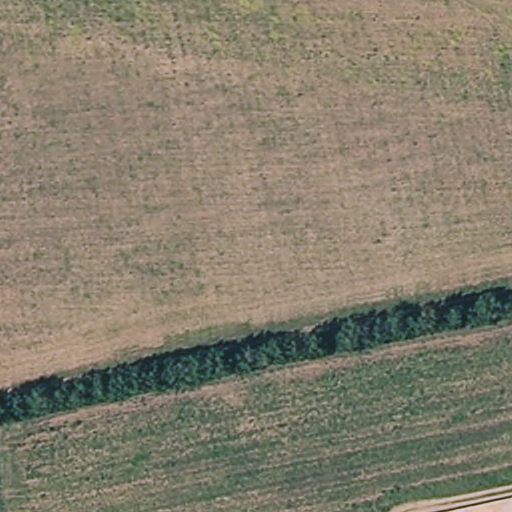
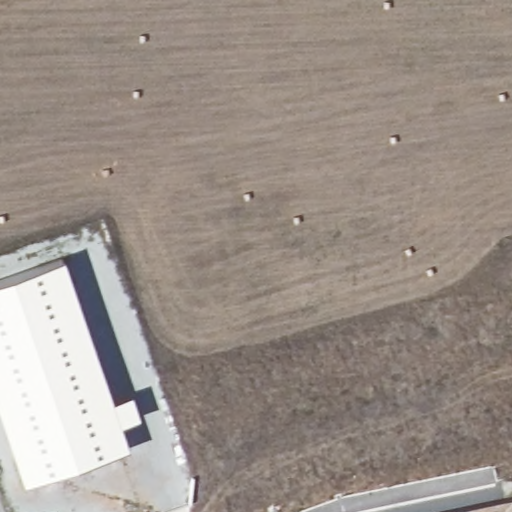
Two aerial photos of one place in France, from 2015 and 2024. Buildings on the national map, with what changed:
new [(119,424),(127,447),(23,483),(0,416),(0,279),(62,258),(111,401),(131,394),(138,418),(119,424)]
unchanged [(512,500),(512,512),(452,512),(512,500)]

